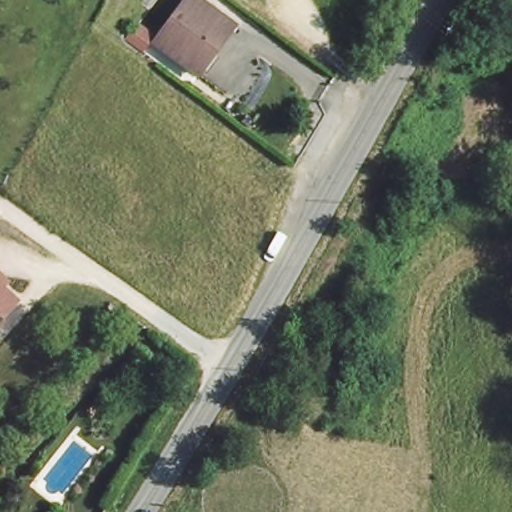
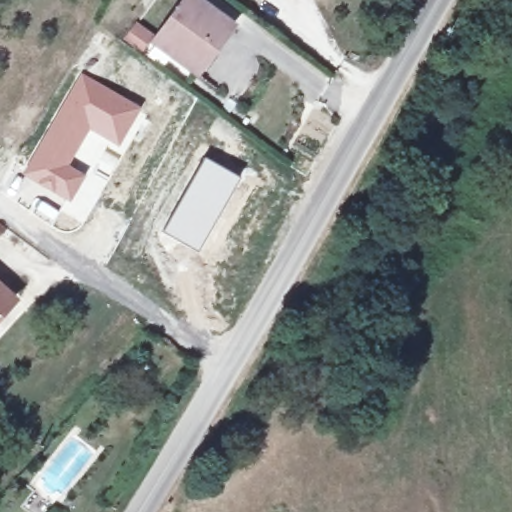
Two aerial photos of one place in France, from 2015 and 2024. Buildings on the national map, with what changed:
unchanged [(153,41),(182,0),(197,0),(223,20),(208,40),(216,46),(196,73),(153,41)]
new [(74,158),(70,164),(86,174),(68,204),(20,174),(80,71),(141,106),(115,147),(109,143),(93,168),(74,158)]
new [(204,156),(240,176),(198,254),(160,232),(204,156)]
unchanged [(0,269),(13,281),(7,286),(23,301),(0,326),(0,269)]

